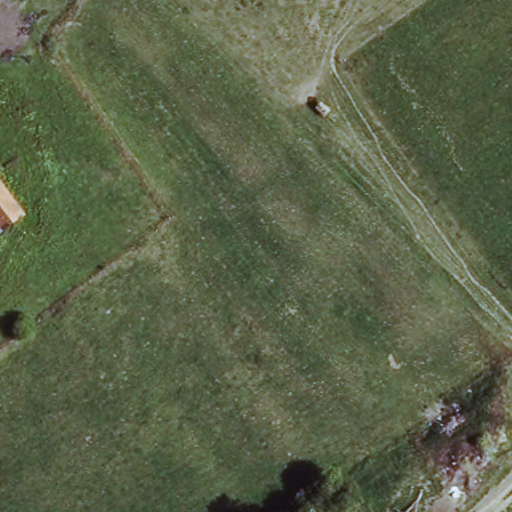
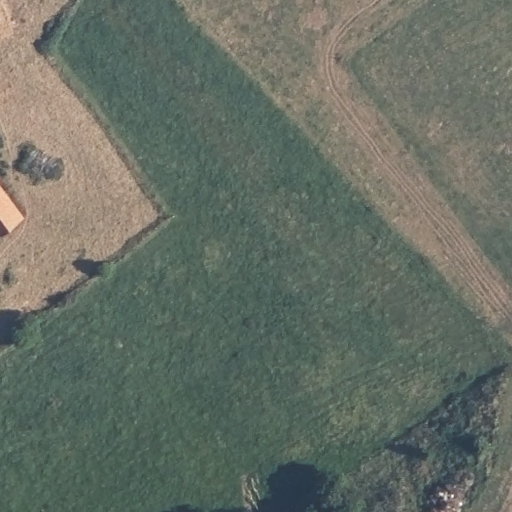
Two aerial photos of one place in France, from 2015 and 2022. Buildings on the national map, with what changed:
unchanged [(20,215),(0,230),(0,187),(20,215)]

